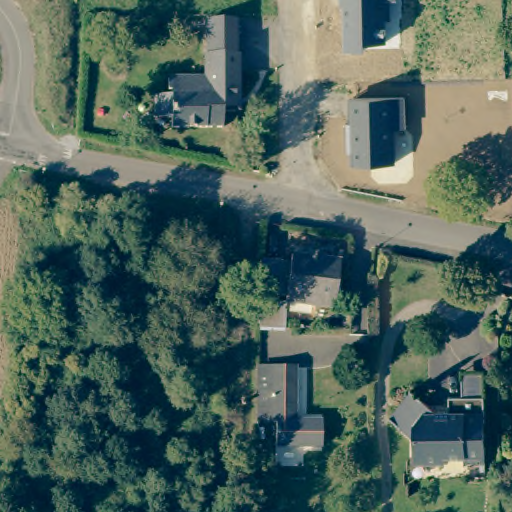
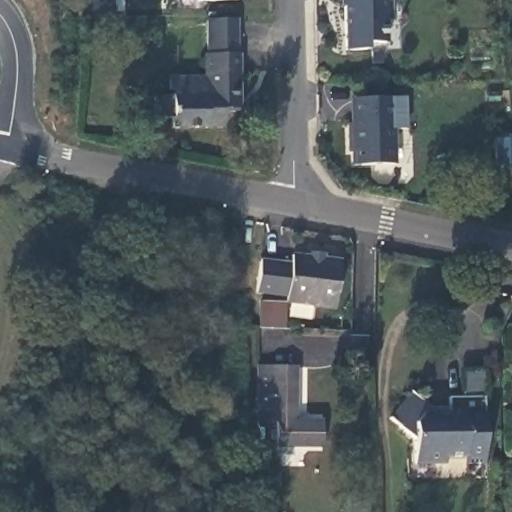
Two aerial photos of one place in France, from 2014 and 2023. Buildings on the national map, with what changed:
unchanged [(238,0),(195,1),(195,0),(238,0)]
unchanged [(342,0),(395,0),(395,1),(392,1),(394,23),(386,23),(387,49),(346,52),(342,0)]
unchanged [(236,83),(236,99),(222,99),(222,127),(172,127),(172,117),(155,117),(155,94),(172,94),(172,77),(207,77),(207,55),(207,18),(242,18),(241,56),(241,76),(241,83),(236,83)]
unchanged [(346,99),(405,97),(406,131),(394,131),(395,165),(351,166),(346,99)]
unchanged [(283,300),(284,295),(254,291),(257,258),(288,261),(288,253),(337,258),(332,305),(285,301),(285,305),(285,327),(257,326),(258,300),(266,300),(283,300)]
unchanged [(296,367),(295,421),(320,422),(320,447),(275,446),(275,423),(259,423),(260,366),(296,367)]
unchanged [(465,461),(465,454),(462,452),(437,452),(437,460),(414,460),(414,438),(390,418),(410,391),(435,411),(449,411),(449,395),(465,395),(465,367),(486,367),(486,395),(485,461),(465,461)]
unchanged [(285,511),(285,512),(250,512),(250,511),(285,511)]

